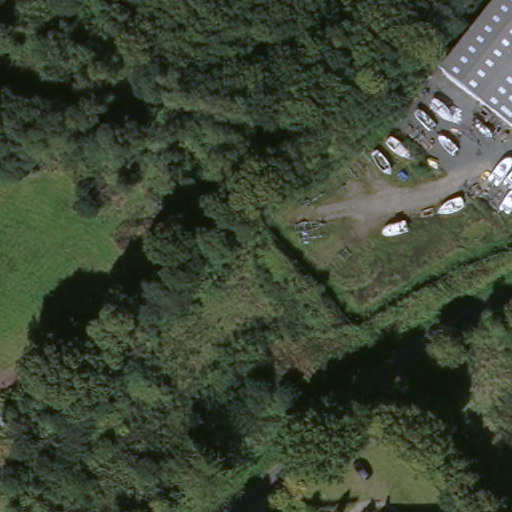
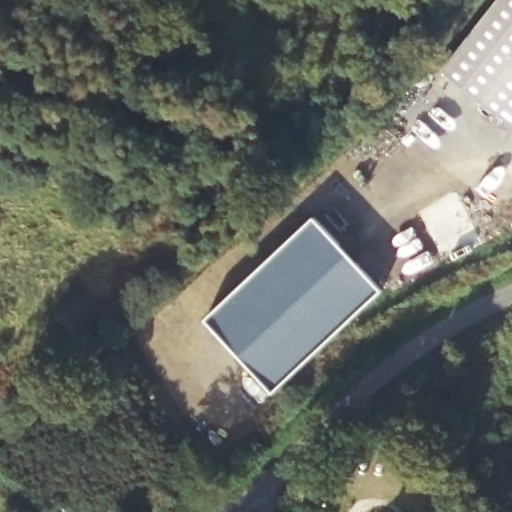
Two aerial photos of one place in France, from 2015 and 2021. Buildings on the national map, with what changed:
unchanged [(501,0),(512,0),(512,126),(438,67),(451,51),(457,55),(501,0)]
new [(381,289),(272,391),(204,321),(313,217),(381,289)]

